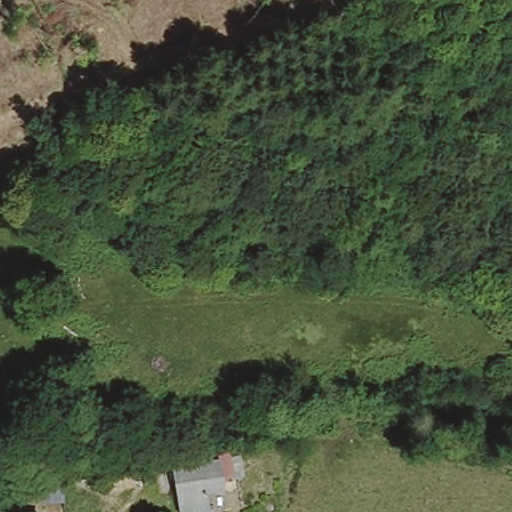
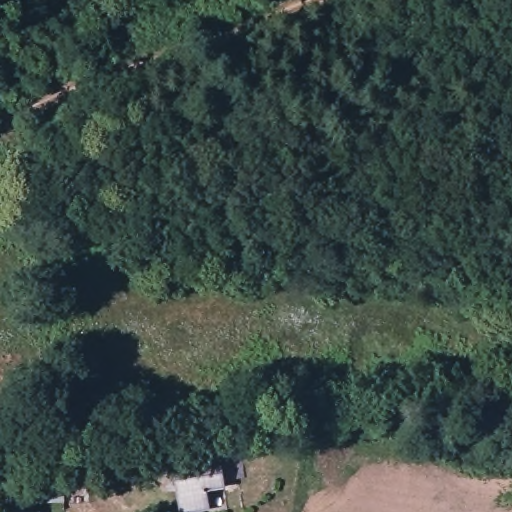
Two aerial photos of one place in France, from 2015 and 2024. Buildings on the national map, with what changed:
unchanged [(217,488),(197,491),(196,510),(184,512),(169,512),(167,461),(215,453),(215,444),(227,443),(227,468),(218,473),(217,488)]
unchanged [(43,512),(0,512),(0,506),(43,504),(43,512)]

